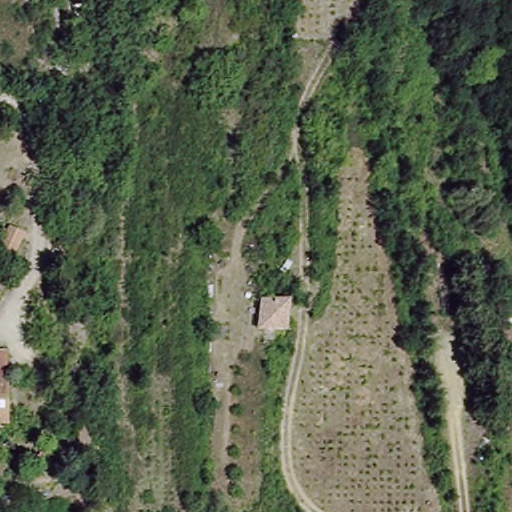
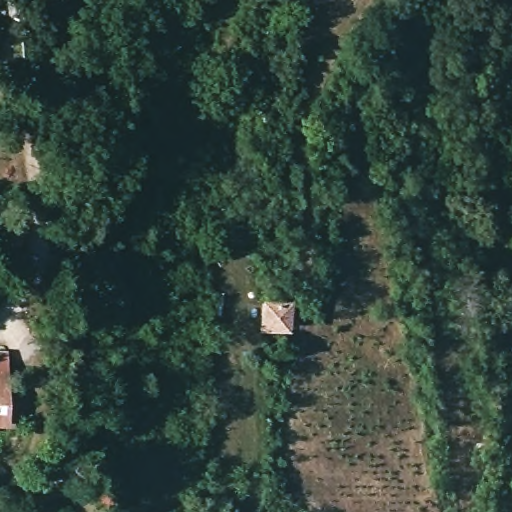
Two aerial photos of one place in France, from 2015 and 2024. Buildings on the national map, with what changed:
unchanged [(289,302),(292,331),(263,335),(260,305),(289,302)]
unchanged [(512,354),(496,356),(492,330),(512,326),(512,354)]
unchanged [(8,373),(0,424),(0,372),(8,373)]

